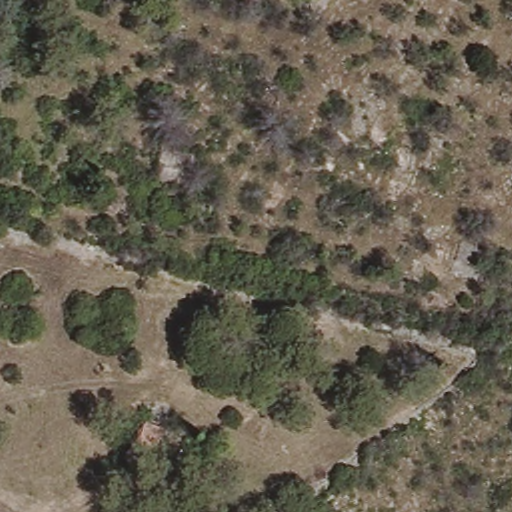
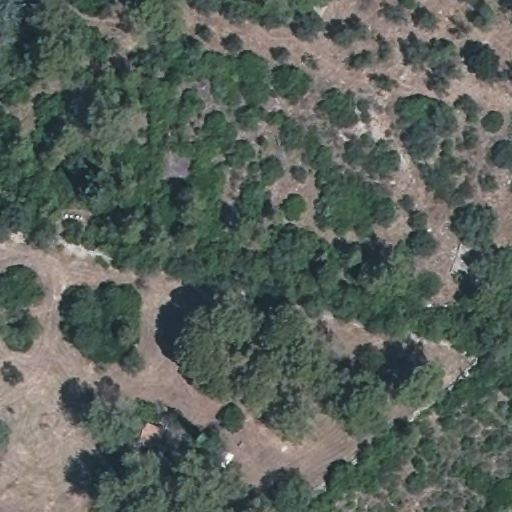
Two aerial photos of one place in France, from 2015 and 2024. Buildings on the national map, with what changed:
unchanged [(164,427),(154,452),(148,451),(132,442),(145,422),(164,427)]

